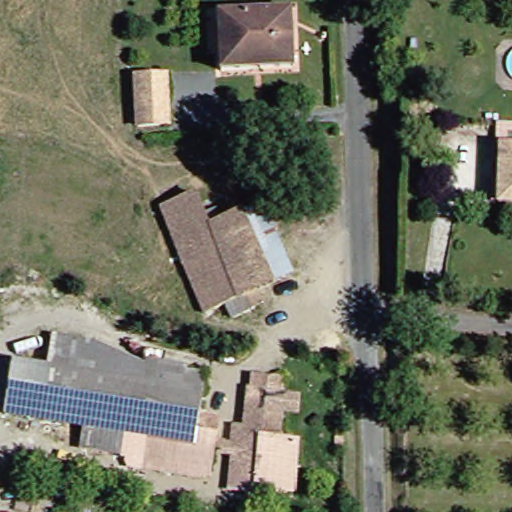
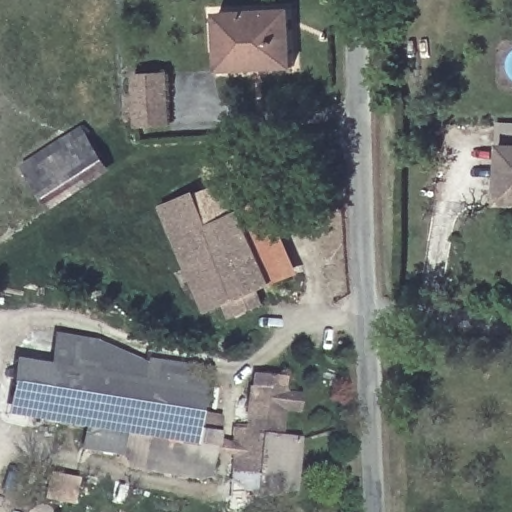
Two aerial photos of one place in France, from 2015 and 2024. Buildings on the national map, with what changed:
unchanged [(296,5),(302,61),(230,70),(222,14),(296,5)]
unchanged [(142,123),(140,73),(155,72),(170,71),(171,121),(155,123),(142,123)]
new [(82,127),(112,171),(51,212),(22,166),(82,127)]
unchanged [(501,144),(512,146),(512,201),(497,200),(501,144)]
unchanged [(239,324),(231,307),(213,316),(164,222),(203,204),(215,223),(241,212),(245,219),(252,217),(285,279),(253,297),(260,312),(239,324)]
unchanged [(268,209),(302,273),(285,279),(252,217),(268,209)]
unchanged [(144,466),(147,440),(7,419),(16,367),(52,372),(57,339),(95,343),(147,364),(190,372),(189,379),(206,382),(197,437),(218,440),(214,476),(144,466)]
unchanged [(254,379),(286,379),(282,439),(302,440),(298,494),(261,494),(262,462),(249,461),(254,379)]

